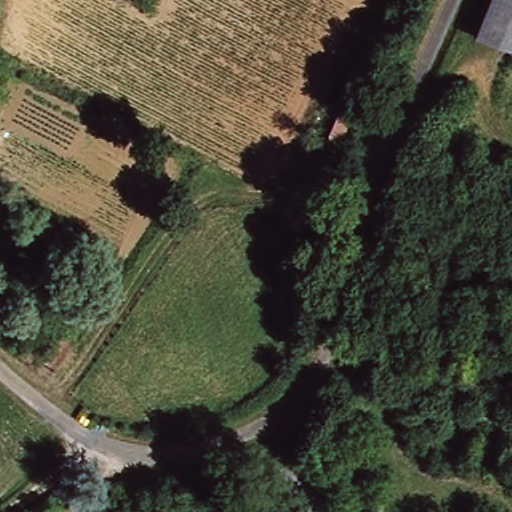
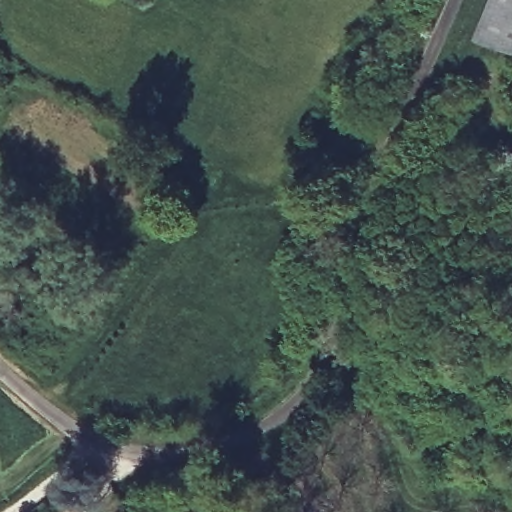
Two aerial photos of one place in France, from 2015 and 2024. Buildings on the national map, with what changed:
unchanged [(477,37),(491,0),(512,0),(512,50),(477,37)]

